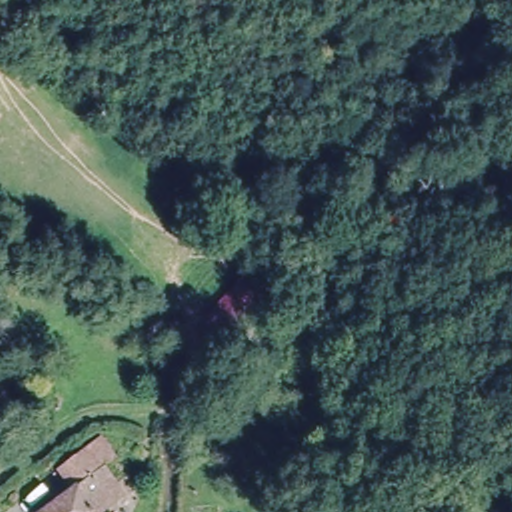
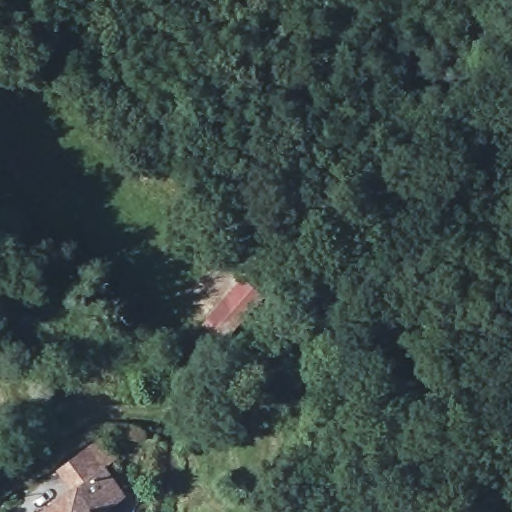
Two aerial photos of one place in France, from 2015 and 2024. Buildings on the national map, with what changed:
unchanged [(59,470),(101,440),(115,460),(105,468),(74,491),(59,470)]
unchanged [(105,468),(124,495),(102,512),(46,512),(74,491),(105,468)]

